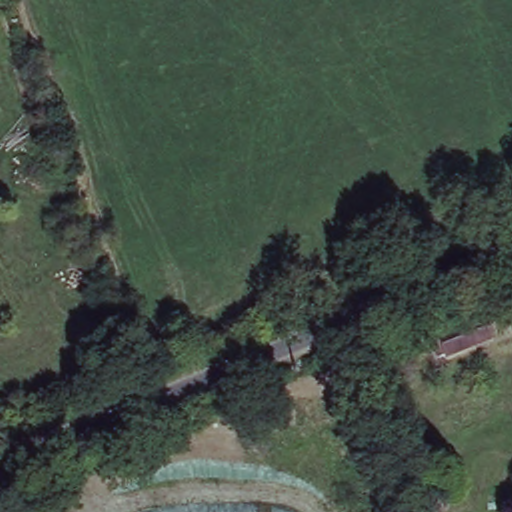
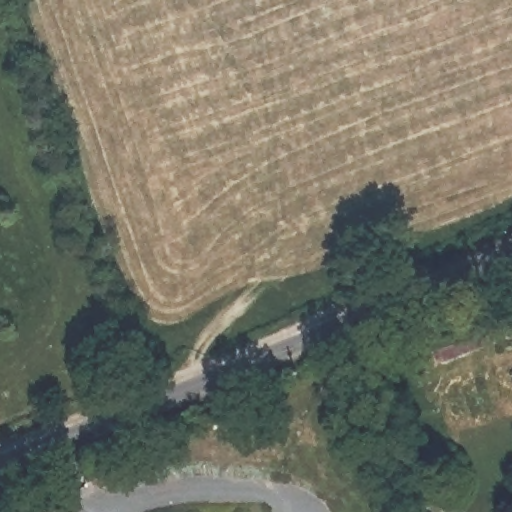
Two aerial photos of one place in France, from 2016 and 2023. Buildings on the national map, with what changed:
unchanged [(432,340),(441,335),(486,317),(495,338),(447,356),(447,352),(441,356),(432,340)]
unchanged [(416,493),(433,476),(453,497),(439,512),(438,512),(416,493)]

